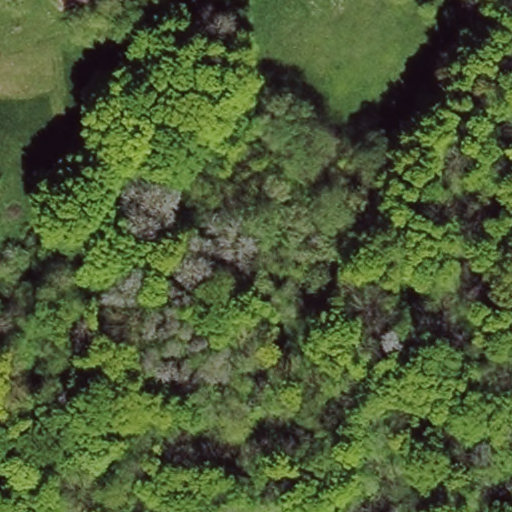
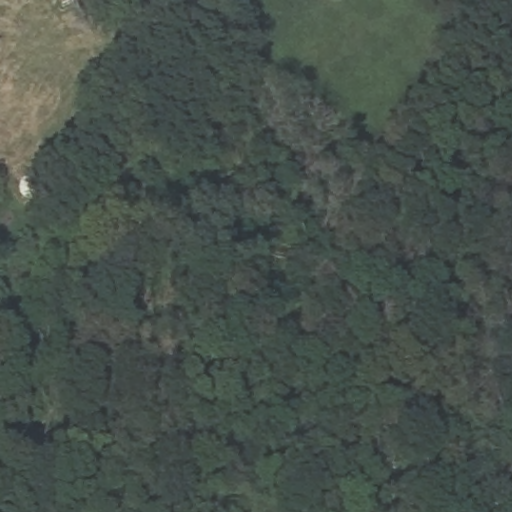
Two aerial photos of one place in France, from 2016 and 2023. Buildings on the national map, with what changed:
unchanged [(55,0),(84,0),(60,10),(55,0)]

